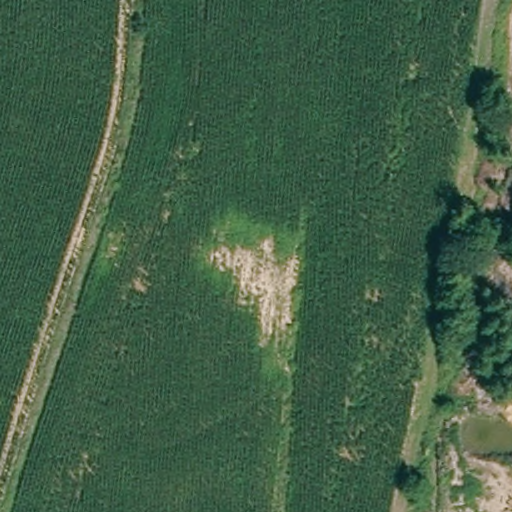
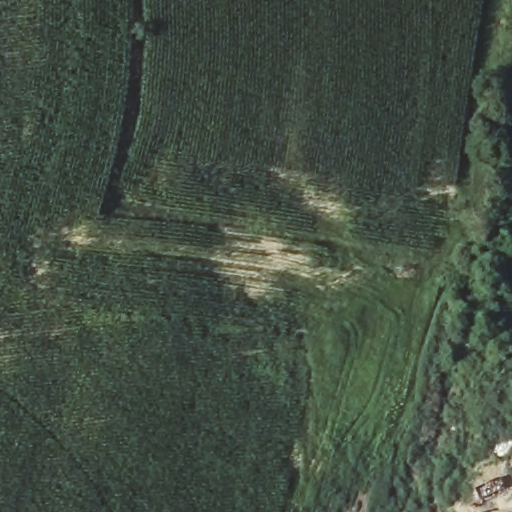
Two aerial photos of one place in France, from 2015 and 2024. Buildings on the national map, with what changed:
[]

